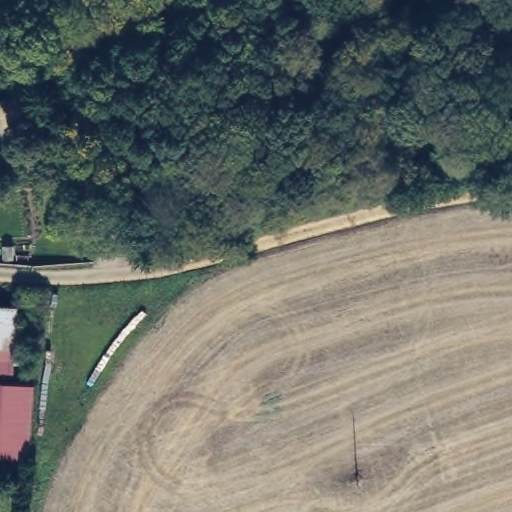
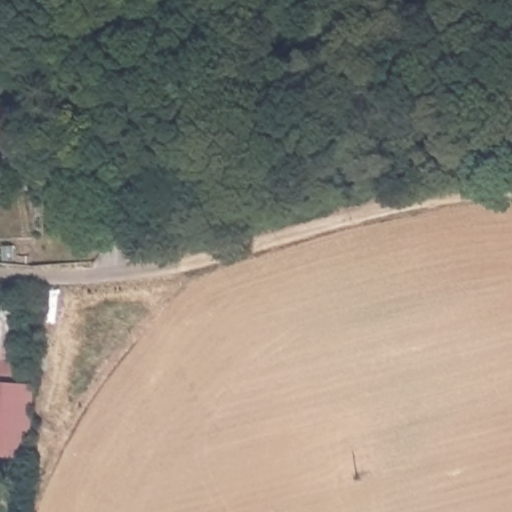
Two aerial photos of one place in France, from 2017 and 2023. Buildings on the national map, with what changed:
unchanged [(92,177),(105,192),(95,200),(82,186),(92,177)]
unchanged [(12,375),(0,375),(0,305),(15,303),(12,375)]
unchanged [(0,382),(35,384),(30,458),(0,456),(0,382)]

